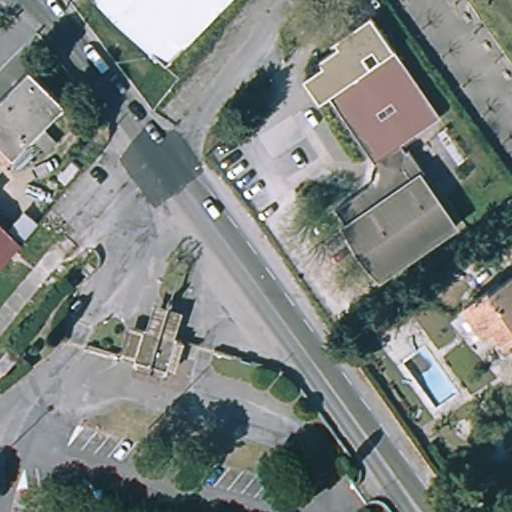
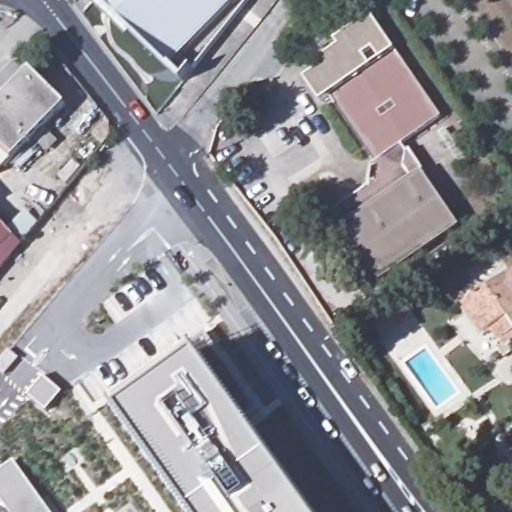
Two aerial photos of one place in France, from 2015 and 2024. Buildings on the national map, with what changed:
unchanged [(165,66),(98,0),(230,0),(165,66)]
unchanged [(398,137),(410,154),(400,160),(408,172),(418,165),(457,219),(377,277),(337,223),(345,217),(337,206),(366,185),(372,156),(327,93),(317,101),(301,78),(320,64),(317,58),(337,43),(332,38),(367,13),(437,109),(398,137)]
unchanged [(70,99),(0,170),(0,97),(33,63),(70,99)]
unchanged [(22,204),(36,216),(20,237),(0,262),(0,217),(5,222),(22,204)]
unchanged [(492,334),(481,341),(458,309),(512,269),(512,341),(502,348),(492,334)]
demolished [(132,360),(140,326),(170,333),(163,367),(132,360)]
new [(238,412),(308,512),(190,512),(120,414),(125,411),(115,398),(203,333),(257,411),(238,412)]
new [(50,512),(10,512),(0,499),(0,473),(15,463),(50,512)]

